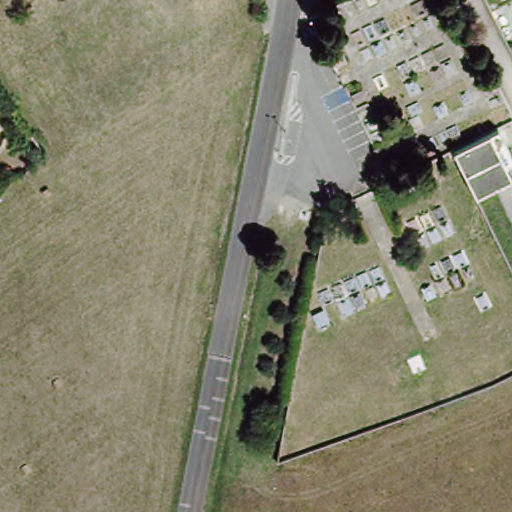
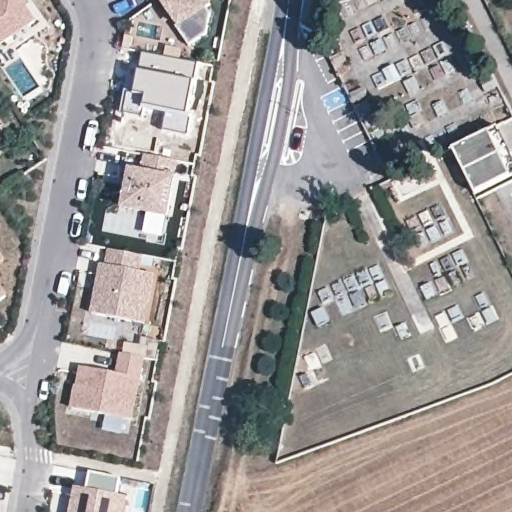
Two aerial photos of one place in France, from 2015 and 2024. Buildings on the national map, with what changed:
new [(0,46),(0,0),(18,0),(34,23),(0,46)]
new [(207,9),(211,15),(208,34),(190,46),(176,26),(177,26),(160,0),(209,0),(213,5),(207,9)]
new [(190,136),(164,132),(166,115),(145,111),(144,119),(123,115),(127,92),(135,94),(140,72),(144,55),(197,65),(195,81),(189,116),(193,118),(190,136)]
unchanged [(0,137),(0,127),(4,133),(0,137)]
unchanged [(455,150),(489,133),(500,129),(512,154),(512,176),(511,177),(477,194),(455,150)]
new [(159,214),(118,207),(125,172),(136,174),(140,154),(169,160),(159,214)]
new [(0,266),(0,249),(8,260),(0,266)]
new [(101,264),(106,265),(109,249),(145,256),(140,272),(157,274),(147,324),(91,312),(101,264)]
new [(0,305),(0,282),(11,298),(0,305)]
new [(77,387),(81,366),(117,374),(121,353),(146,358),(134,421),(71,409),(75,386),(77,387)]
new [(74,486),(85,488),(89,471),(121,478),(118,495),(127,498),(124,512),(68,512),(74,486)]

